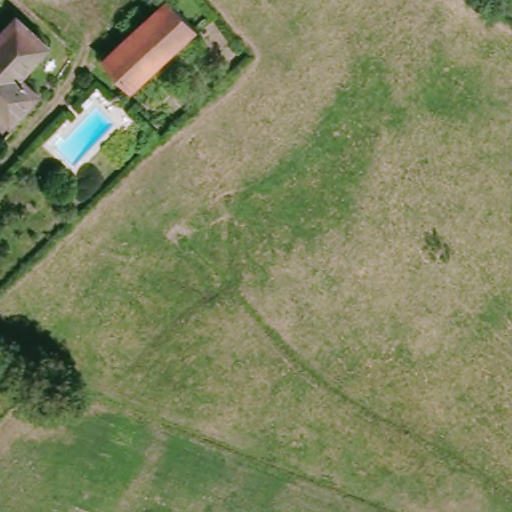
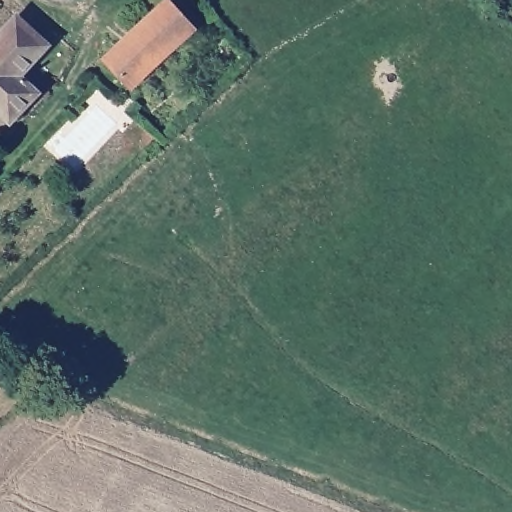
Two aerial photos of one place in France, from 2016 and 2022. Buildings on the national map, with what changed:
unchanged [(196,36),(136,95),(105,64),(164,5),(196,36)]
unchanged [(50,50),(25,76),(42,93),(13,124),(0,111),(0,43),(20,21),(50,50)]

